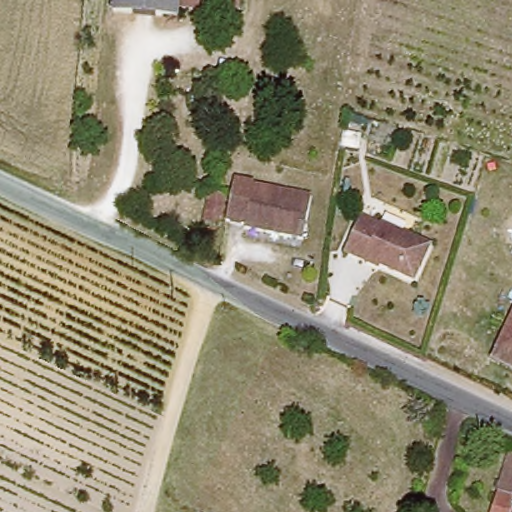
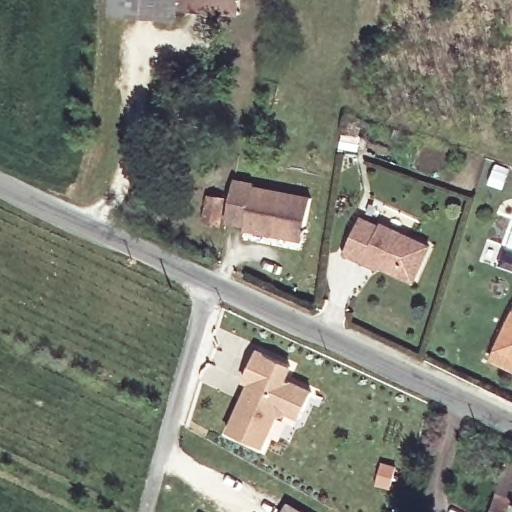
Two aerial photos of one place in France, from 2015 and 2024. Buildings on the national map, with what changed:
unchanged [(116,4),(116,0),(182,0),(181,11),(116,4)]
unchanged [(270,228),(248,224),(257,180),(277,184),(277,187),(332,198),(322,242),(269,234),(270,228)]
unchanged [(228,202),(246,206),(242,229),(223,225),(228,202)]
unchanged [(371,219),(412,244),(415,240),(437,255),(417,286),(372,259),(370,264),(351,253),(371,219)]
unchanged [(510,323),(512,320),(512,324),(510,323)]
unchanged [(495,355),(510,323),(512,324),(512,363),(495,355)]
new [(294,367),(288,378),(313,389),(300,418),(283,411),(266,449),(227,432),(248,385),(242,381),(257,350),(294,367)]
unchanged [(512,459),(512,512),(495,512),(512,459)]
new [(287,504),(302,512),(282,512),(287,504)]

